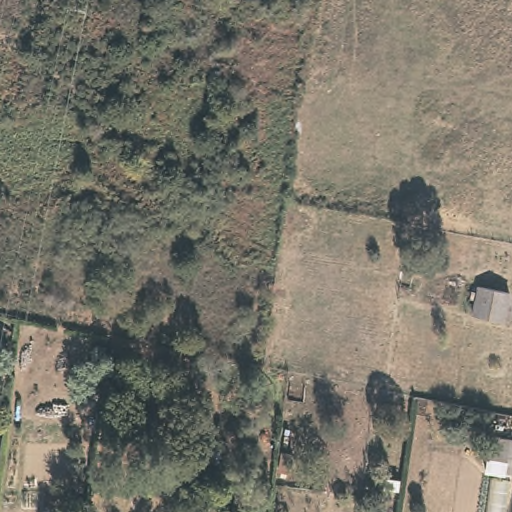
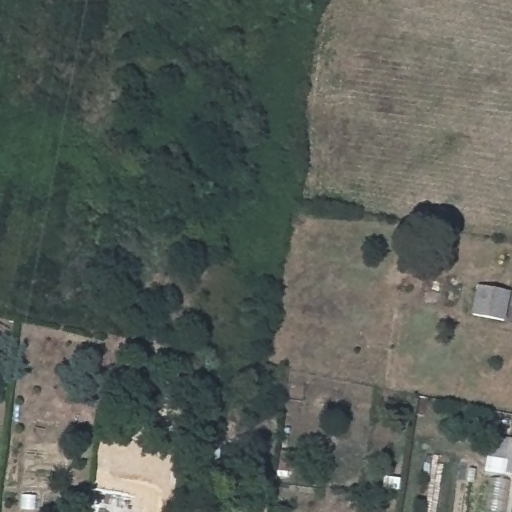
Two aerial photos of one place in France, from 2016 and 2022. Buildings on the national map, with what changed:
unchanged [(508,291),(503,318),(474,312),(478,285),(508,291)]
unchanged [(512,474),(508,474),(510,458),(498,455),(500,437),(512,439),(512,474)]

